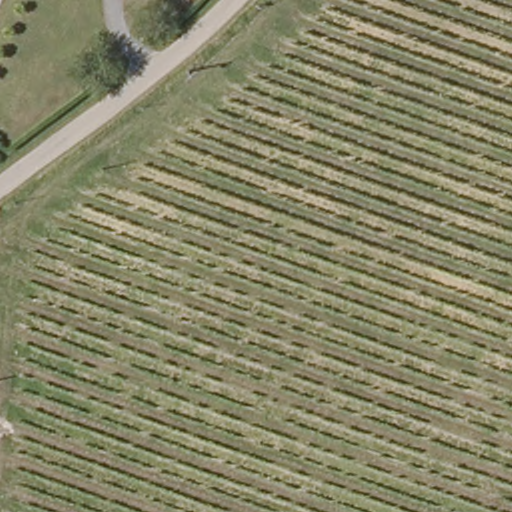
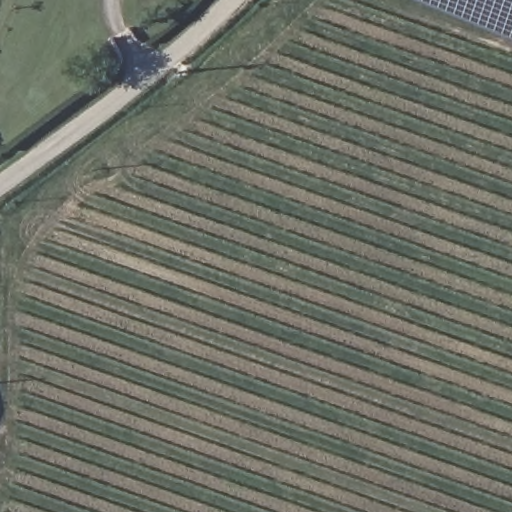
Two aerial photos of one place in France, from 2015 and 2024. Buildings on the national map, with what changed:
new [(512,0),(512,36),(422,0),(512,0)]

